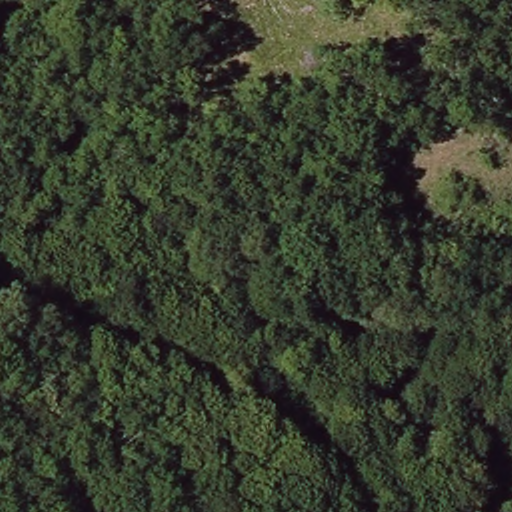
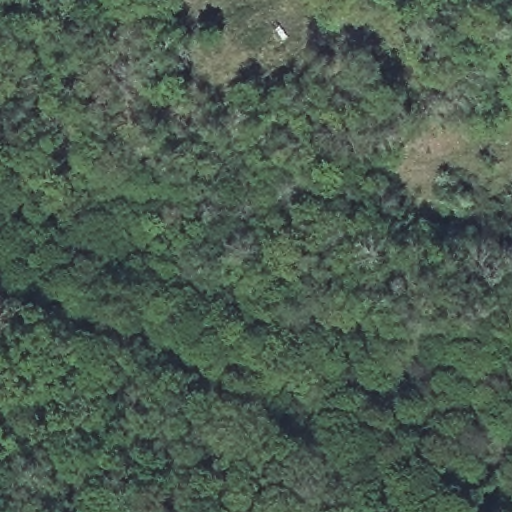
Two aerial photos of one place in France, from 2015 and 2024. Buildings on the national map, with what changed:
unchanged [(458,67),(480,49),(503,72),(481,94),(458,67)]

